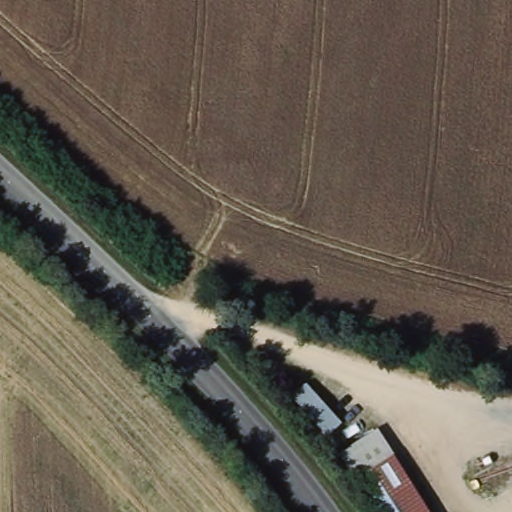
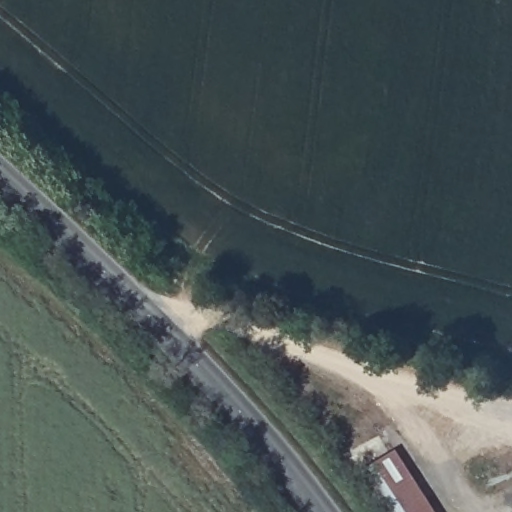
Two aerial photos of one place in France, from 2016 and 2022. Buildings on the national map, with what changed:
unchanged [(355,480),(391,455),(408,481),(372,503),(355,480)]
unchanged [(427,512),(378,512),(372,503),(408,481),(427,512)]

